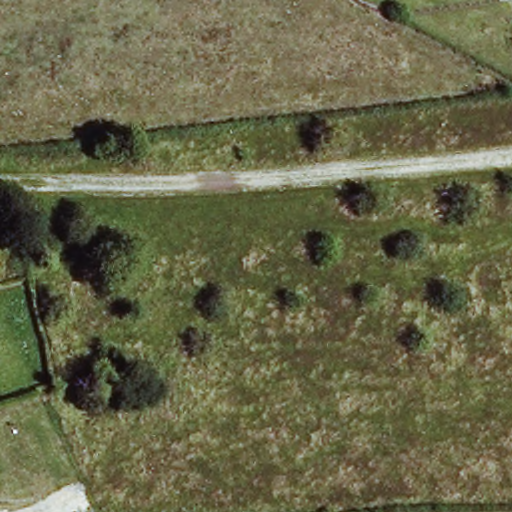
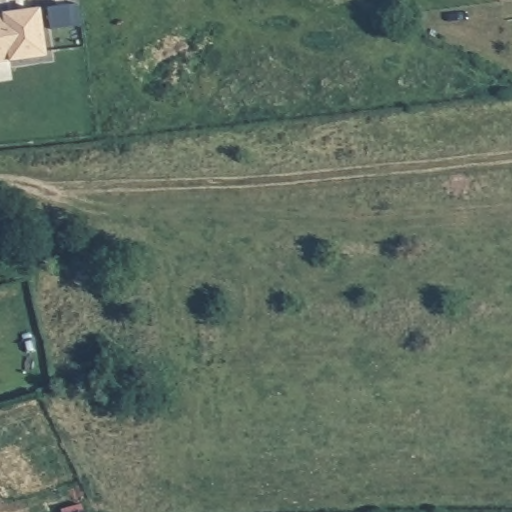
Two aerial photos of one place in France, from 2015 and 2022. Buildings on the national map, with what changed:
new [(0,60),(0,15),(22,12),(56,9),(61,53),(0,60)]

